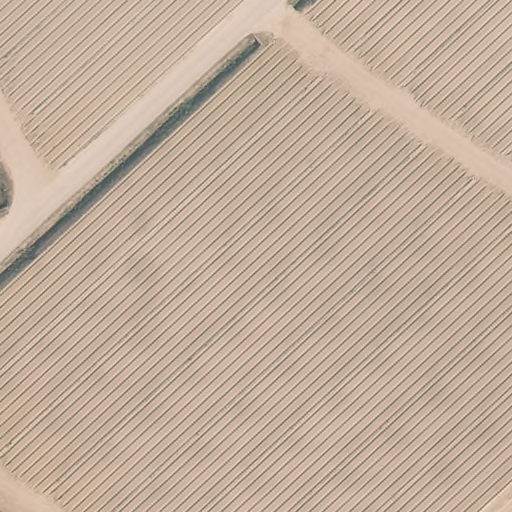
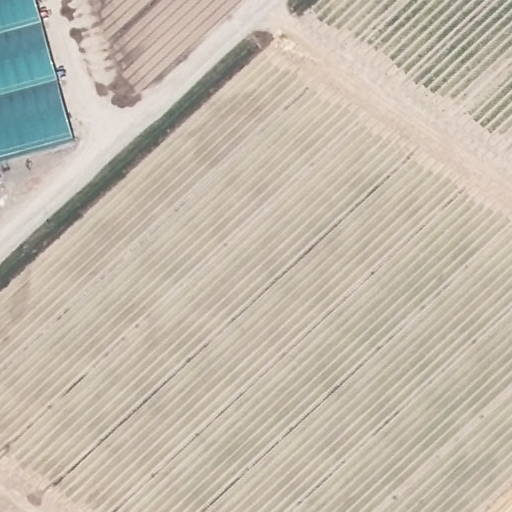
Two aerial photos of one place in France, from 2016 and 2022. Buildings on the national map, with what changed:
new [(75,141),(0,161),(0,0),(37,0),(75,141)]

